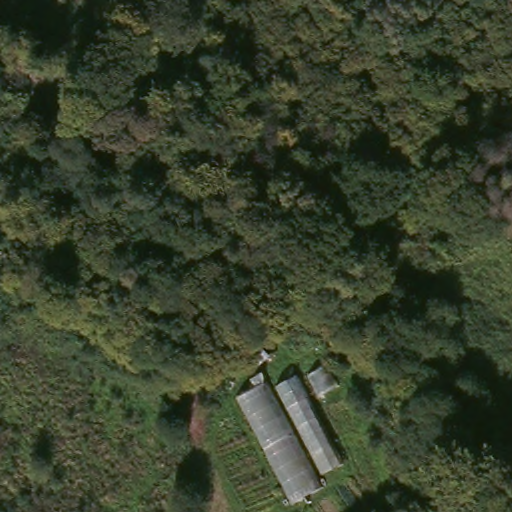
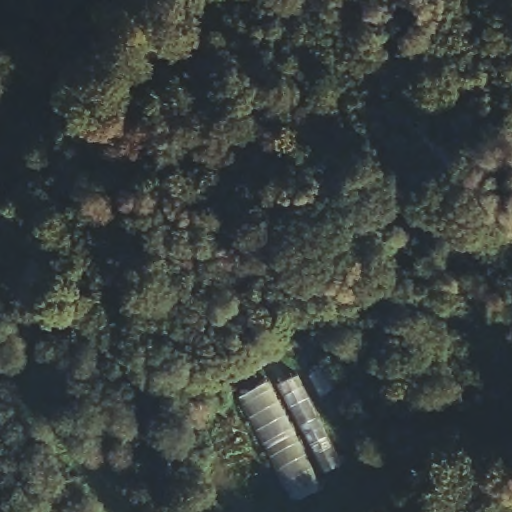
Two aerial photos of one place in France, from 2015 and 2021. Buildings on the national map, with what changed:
unchanged [(267,380),(272,387),(296,373),(342,465),(319,476),(325,488),(292,505),(236,397),(267,380)]

